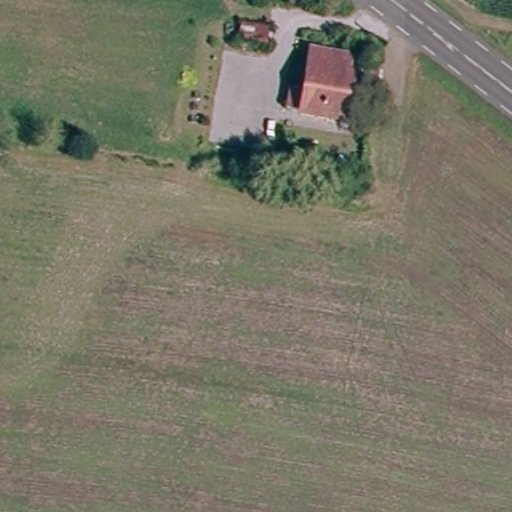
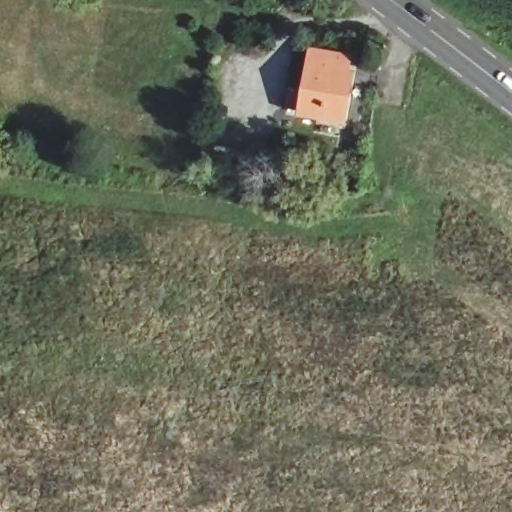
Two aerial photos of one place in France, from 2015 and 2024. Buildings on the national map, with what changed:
unchanged [(338,62),(335,75),(345,77),(336,122),(297,115),(308,57),(338,62)]

